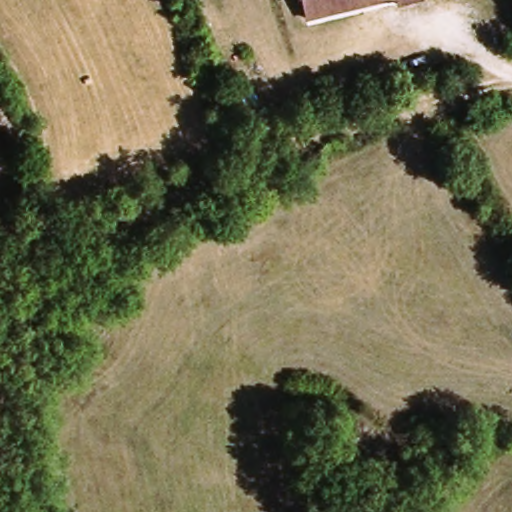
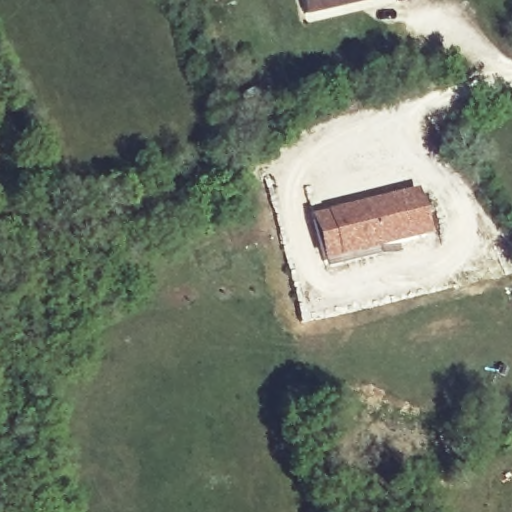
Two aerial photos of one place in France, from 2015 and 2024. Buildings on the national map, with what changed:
unchanged [(303,17),(299,0),(328,0),(330,11),(303,17)]
unchanged [(330,11),(328,0),(361,0),(362,4),(330,11)]
unchanged [(395,0),(406,0),(396,2),(395,0)]
new [(307,219),(417,190),(430,237),(320,266),(307,219)]

